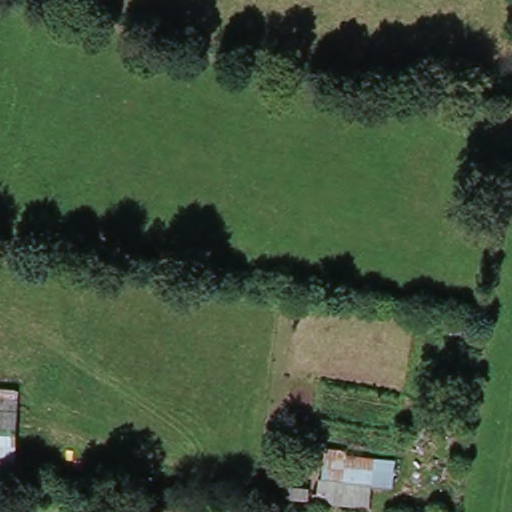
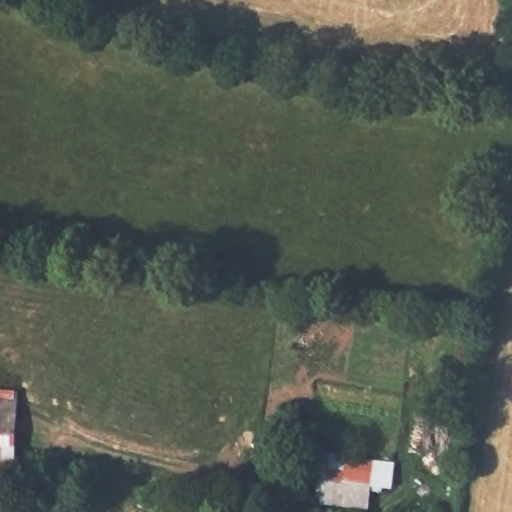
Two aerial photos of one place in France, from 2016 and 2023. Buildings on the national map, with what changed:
unchanged [(0,480),(0,385),(21,386),(15,480),(0,480)]
unchanged [(318,501),(323,448),(395,457),(392,482),(374,481),(370,504),(318,501)]

